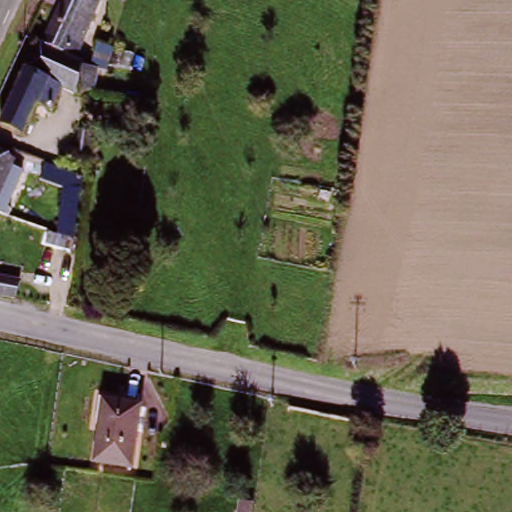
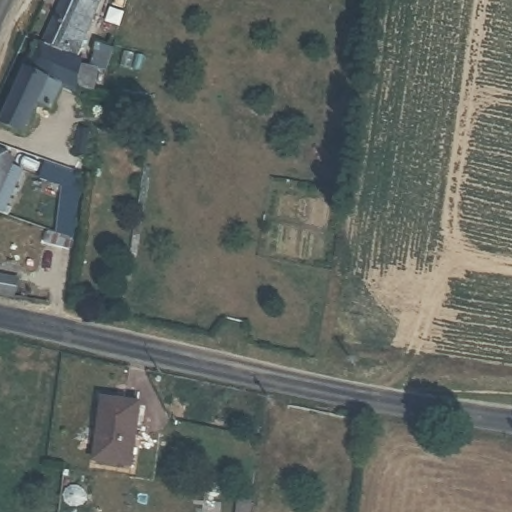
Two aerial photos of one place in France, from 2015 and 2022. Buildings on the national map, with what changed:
unchanged [(81,31),(69,55),(43,42),(62,0),(90,0),(76,29),(81,31)]
unchanged [(69,55),(82,61),(97,64),(94,87),(87,88),(78,86),(73,95),(61,89),(52,113),(39,108),(24,135),(2,125),(26,70),(31,68),(43,42),(69,55)]
unchanged [(86,154),(74,153),(78,127),(85,128),(90,129),(86,154)]
unchanged [(6,166),(18,171),(1,207),(0,210),(0,166),(5,168),(6,166)]
unchanged [(73,228),(58,224),(63,192),(39,182),(43,168),(80,181),(73,228)]
unchanged [(11,298),(0,296),(0,278),(14,281),(11,298)]
unchanged [(105,400),(141,405),(131,468),(95,463),(105,400)]

